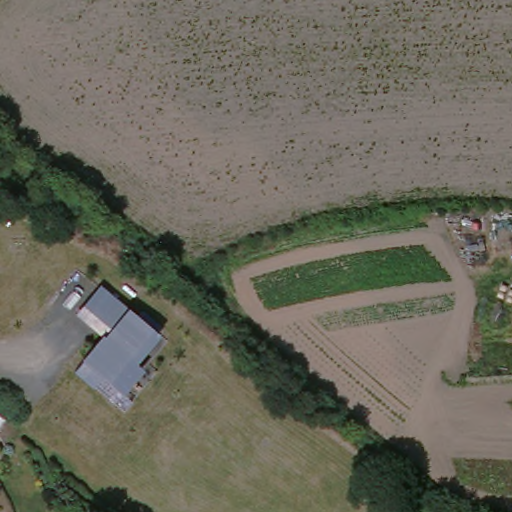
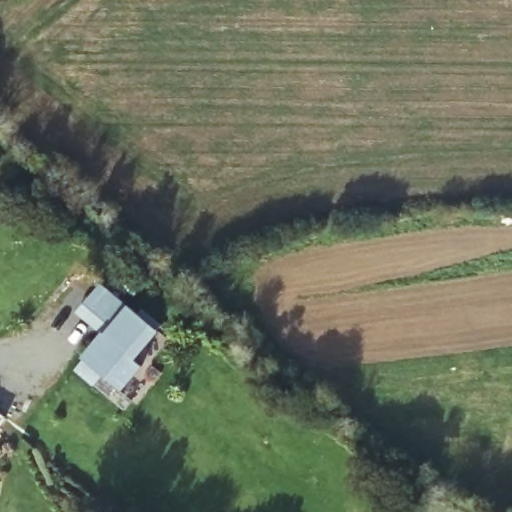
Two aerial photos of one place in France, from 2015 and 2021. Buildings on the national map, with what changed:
unchanged [(101,331),(79,313),(103,280),(164,328),(140,357),(148,364),(126,390),(105,374),(98,383),(75,367),(101,331)]
unchanged [(0,429),(0,411),(11,418),(0,429)]

